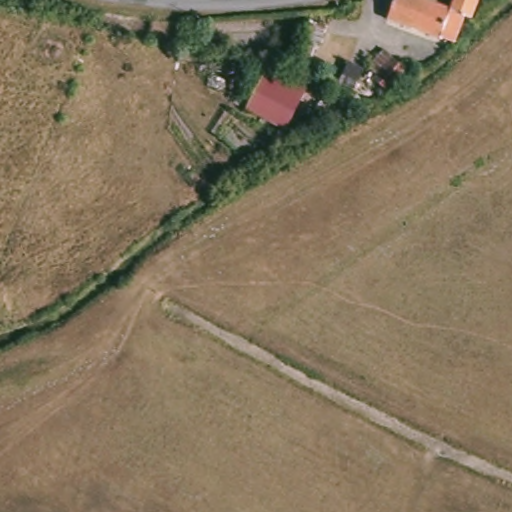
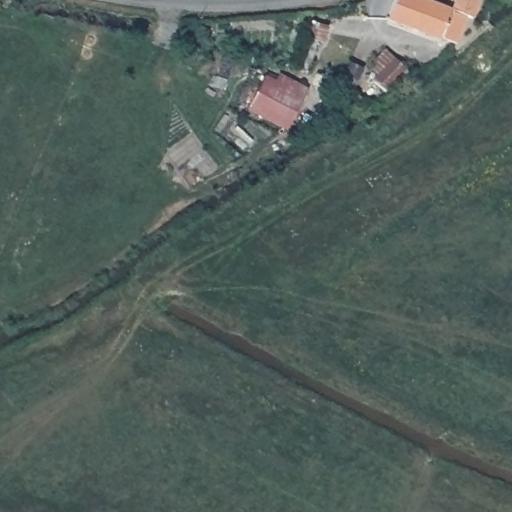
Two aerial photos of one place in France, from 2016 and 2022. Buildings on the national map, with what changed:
unchanged [(449,0),(475,0),(473,8),(465,7),(453,37),(388,19),(393,0),(443,0),(448,1),(449,0)]
unchanged [(302,102),(283,134),(244,111),(263,81),(302,102)]

